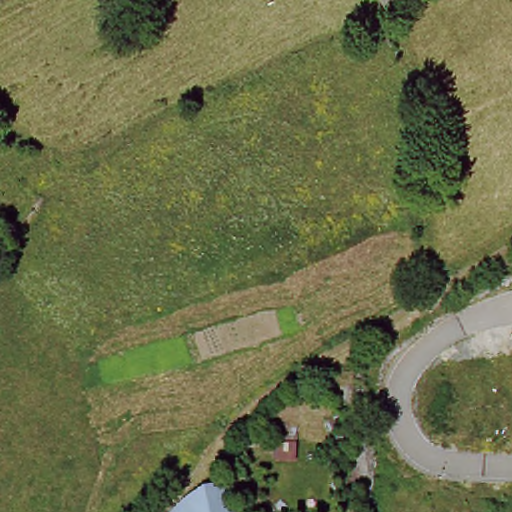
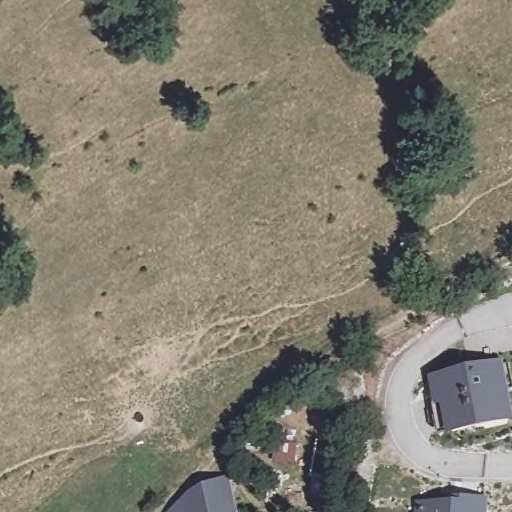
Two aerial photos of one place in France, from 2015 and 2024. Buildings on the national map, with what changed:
new [(430,378),(505,360),(512,393),(512,423),(448,437),(440,406),(436,407),(430,378)]
unchanged [(232,486),(235,512),(177,512),(202,494),(232,486)]
new [(490,506),(490,512),(448,512),(447,508),(490,506)]

